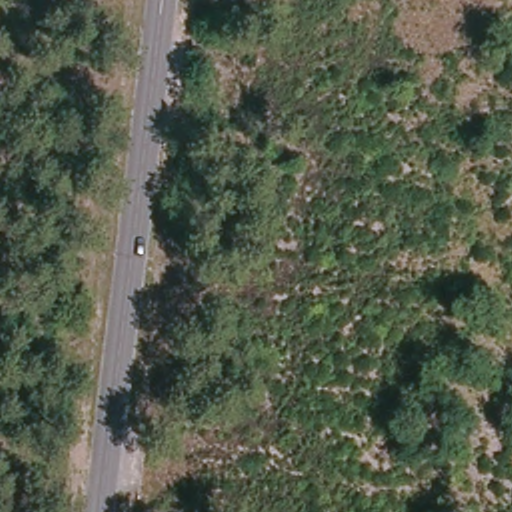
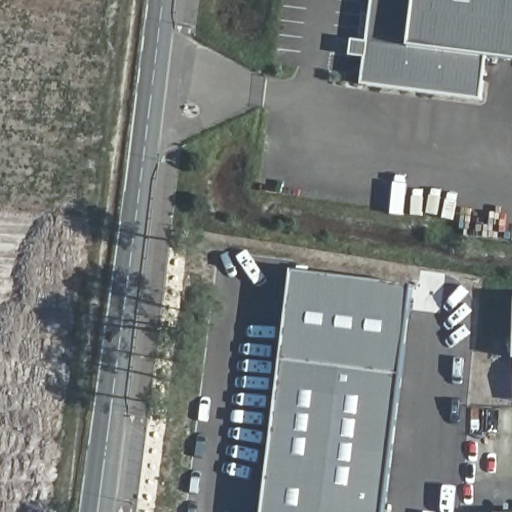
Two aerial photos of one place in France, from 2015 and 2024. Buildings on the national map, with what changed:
new [(361,85),(372,0),(417,0),(411,46),(488,56),(483,100),(361,85)]
new [(488,56),(411,46),(417,0),(512,0),(512,60),(488,56)]
new [(414,287),(387,512),(263,512),(293,272),(414,287)]

